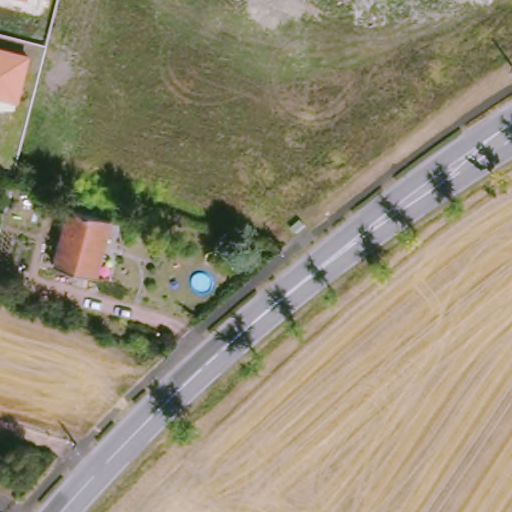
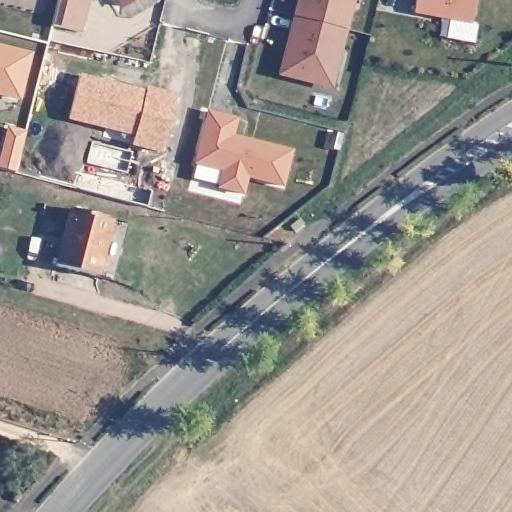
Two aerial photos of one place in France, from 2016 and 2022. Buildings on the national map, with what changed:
new [(121,9),(115,0),(136,0),(121,9)]
new [(332,89),(279,75),(297,0),(354,0),(332,89)]
new [(414,14),(417,0),(476,0),(471,24),(414,14)]
unchanged [(30,52),(19,101),(0,97),(0,45),(30,52)]
new [(176,95),(161,155),(132,147),(134,138),(69,120),(81,74),(145,90),(147,87),(176,95)]
new [(216,189),(220,171),(193,163),(207,111),(237,119),(234,135),(292,151),(283,187),(247,179),(243,196),(216,189)]
unchanged [(54,266),(72,213),(112,225),(95,278),(54,266)]

